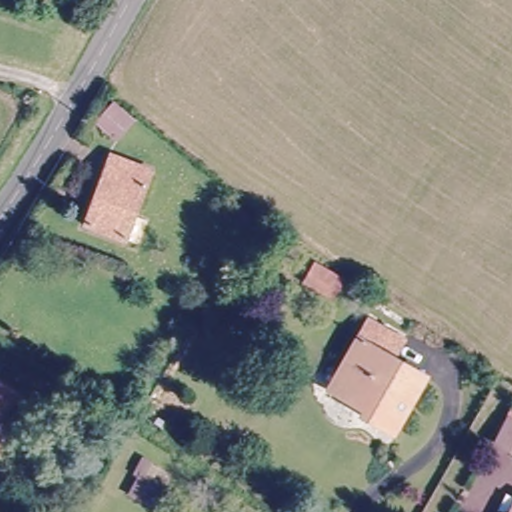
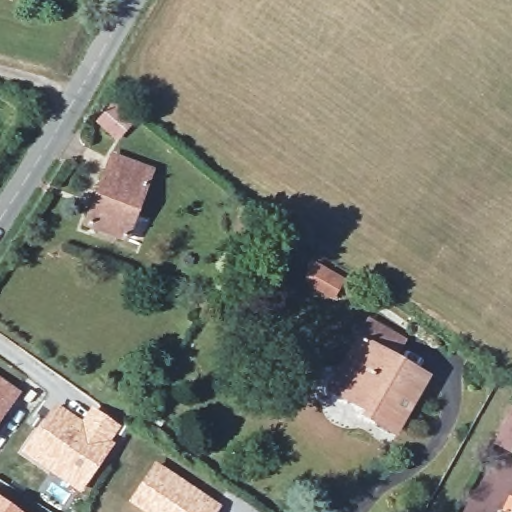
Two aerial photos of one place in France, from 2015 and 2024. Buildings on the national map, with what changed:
unchanged [(100,124),(112,104),(132,117),(120,136),(100,124)]
unchanged [(114,165),(150,177),(124,242),(90,229),(114,165)]
unchanged [(364,416),(368,408),(327,386),(365,320),(401,342),(392,357),(421,374),(390,431),(364,416)]
unchanged [(10,394),(0,409),(0,387),(10,394)]
unchanged [(512,400),(512,437),(497,429),(512,400)]
new [(26,452),(57,406),(85,424),(93,413),(117,428),(107,441),(111,445),(79,487),(26,452)]
new [(155,460),(222,505),(218,512),(141,512),(127,501),(155,460)]
new [(19,512),(0,512),(0,498),(19,512)]

